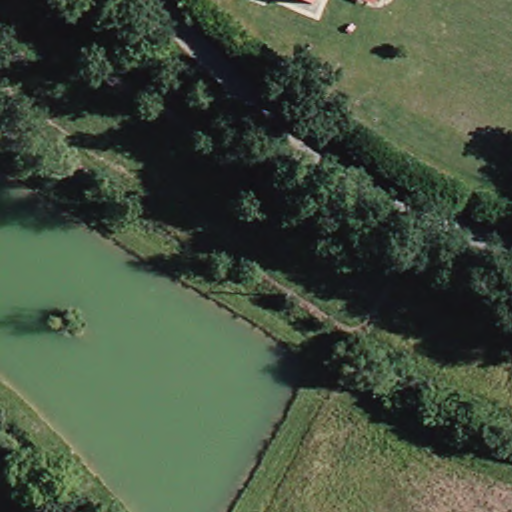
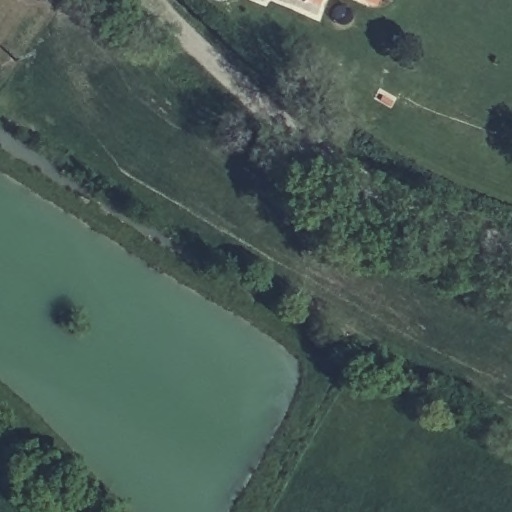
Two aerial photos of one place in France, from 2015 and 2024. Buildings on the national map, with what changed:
unchanged [(316,4),(307,0),(318,0),(316,4)]
unchanged [(377,2),(372,0),(378,0),(377,2)]

